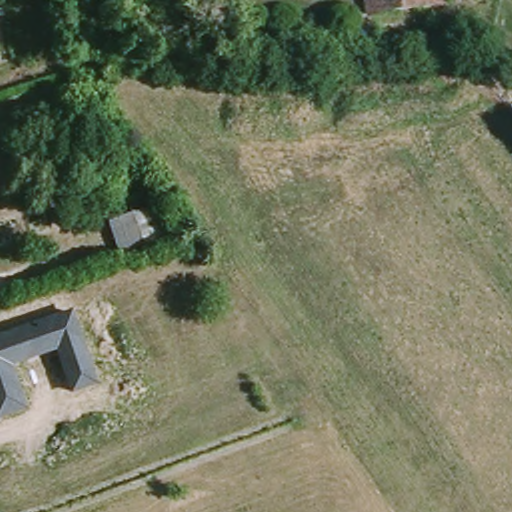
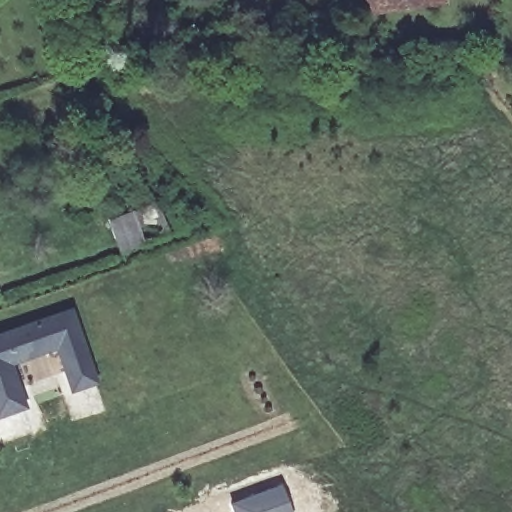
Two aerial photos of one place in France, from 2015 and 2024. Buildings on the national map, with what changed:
unchanged [(459,0),(459,5),(381,9),(380,0),(459,0)]
unchanged [(167,201),(180,234),(132,250),(117,219),(167,201)]
unchanged [(72,308),(99,383),(69,394),(55,352),(12,367),(26,411),(0,420),(0,335),(72,308)]
new [(281,483),(292,512),(233,512),(229,502),(281,483)]

